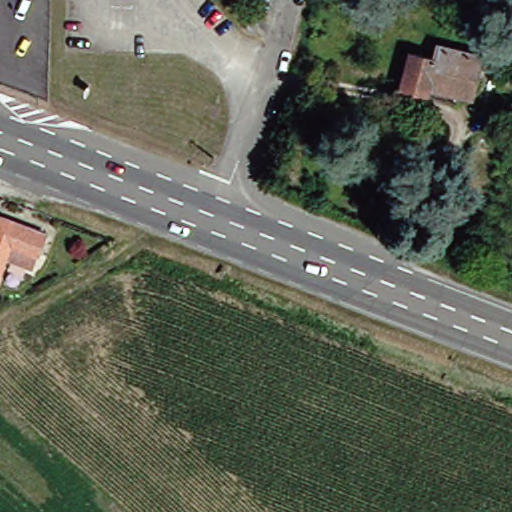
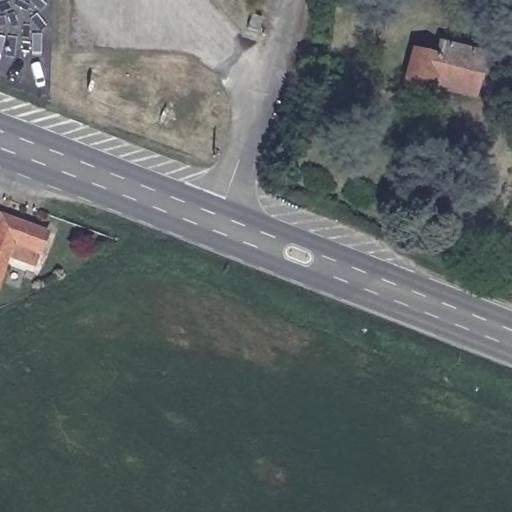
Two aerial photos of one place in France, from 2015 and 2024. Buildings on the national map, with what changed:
unchanged [(426,51),(484,67),(476,99),(431,86),(430,92),(402,85),(415,39),(428,41),(426,51)]
unchanged [(502,72),(486,69),(488,58),(504,62),(502,72)]
unchanged [(2,217),(49,236),(41,257),(14,246),(0,279),(0,223),(2,217)]
unchanged [(453,273),(444,270),(447,262),(450,256),(459,260),(457,267),(453,273)]

